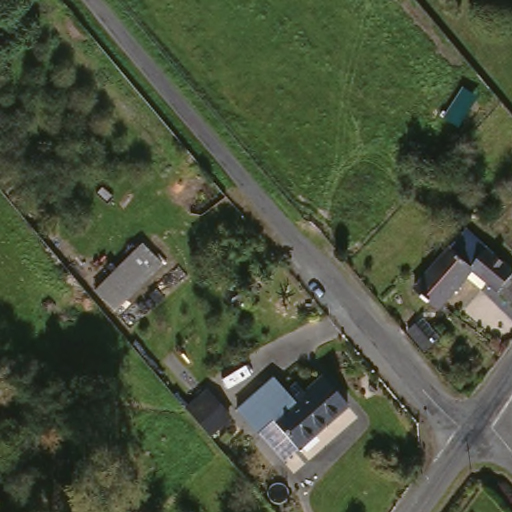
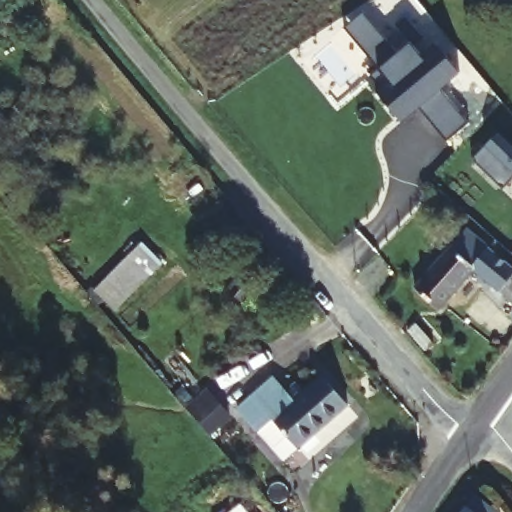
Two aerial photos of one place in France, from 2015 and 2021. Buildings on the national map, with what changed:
new [(409,42),(395,24),(404,16),(431,48),(435,44),(460,73),(440,90),(419,108),(405,119),(370,75),(378,69),(365,53),(344,27),(363,11),(384,37),(397,52),(409,42)]
new [(440,90),(469,125),(448,143),(419,108),(440,90)]
unchanged [(479,269),(445,304),(419,283),(472,227),(492,244),(512,260),(512,295),(479,269)]
unchanged [(150,240),(167,263),(119,313),(102,290),(150,240)]
unchanged [(266,436),(246,412),(284,381),(295,395),(306,387),(314,396),(333,381),(357,409),(306,451),(290,465),(266,436)]
unchanged [(234,421),(220,432),(204,413),(217,401),(234,421)]
new [(499,511),(498,512),(459,512),(464,504),(473,492),(499,511)]

